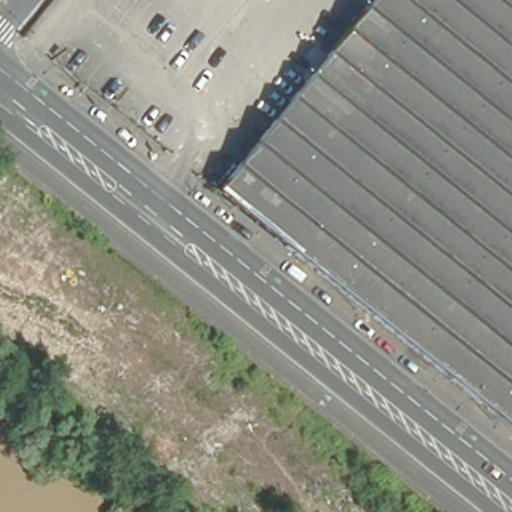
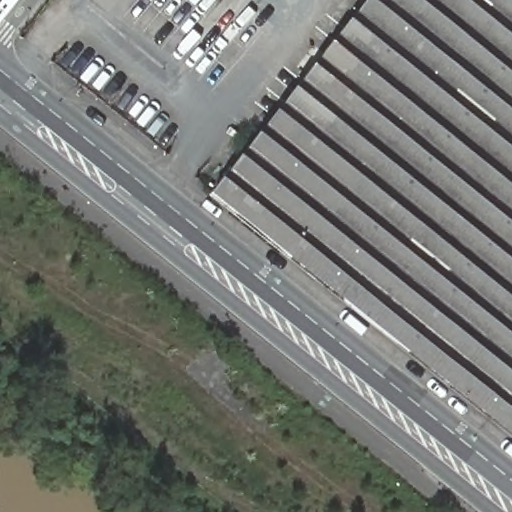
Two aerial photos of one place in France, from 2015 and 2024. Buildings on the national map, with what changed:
unchanged [(216,188),(365,3),(367,0),(512,0),(512,425),(216,188)]

